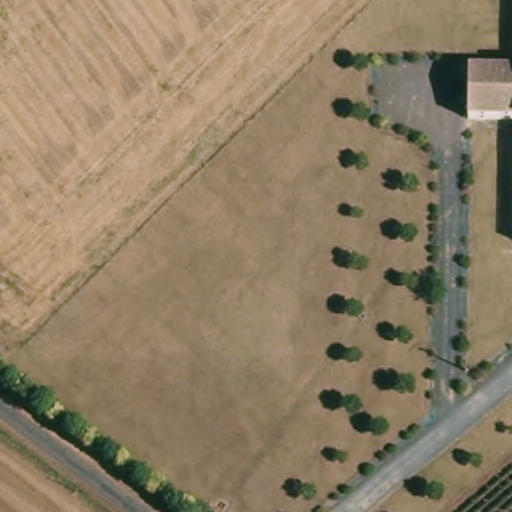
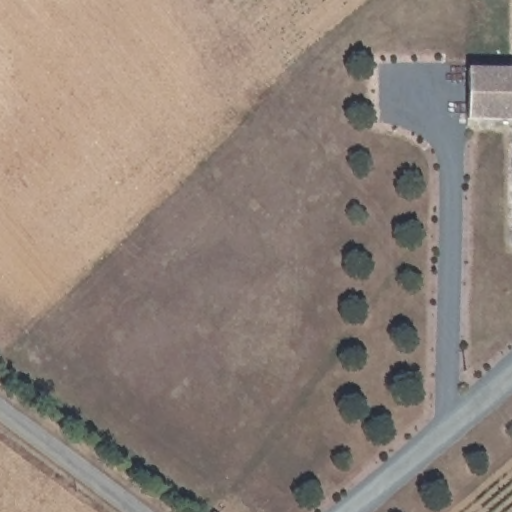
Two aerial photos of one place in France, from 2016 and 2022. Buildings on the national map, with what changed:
unchanged [(460,71),(512,72),(512,122),(510,122),(459,121),(460,71)]
unchanged [(508,242),(510,145),(510,122),(512,122),(512,243),(508,242)]

